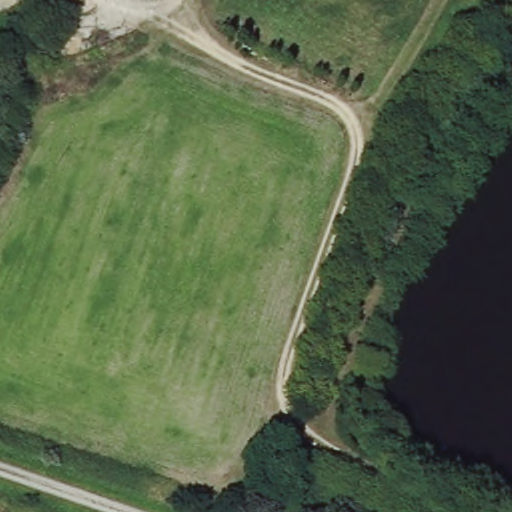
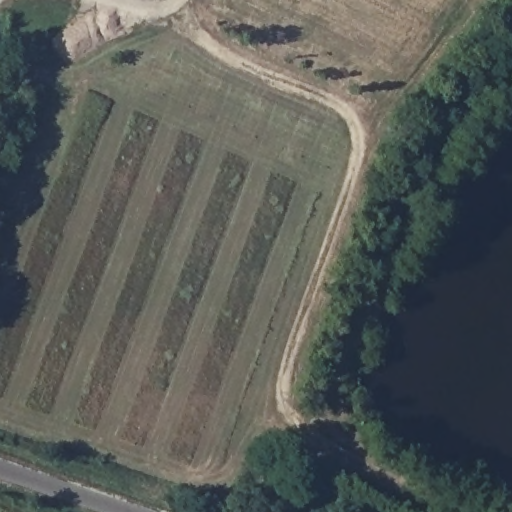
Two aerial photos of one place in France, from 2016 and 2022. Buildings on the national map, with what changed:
[]

